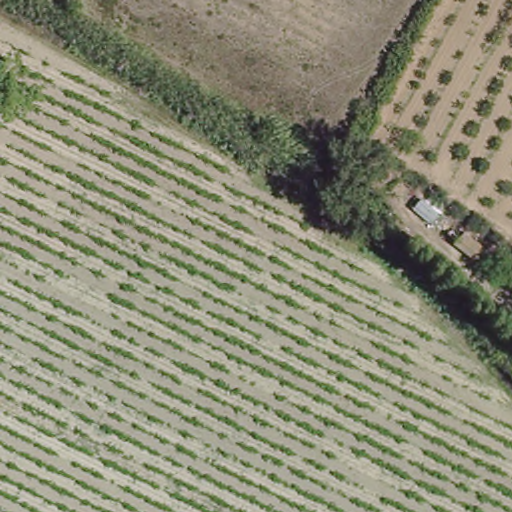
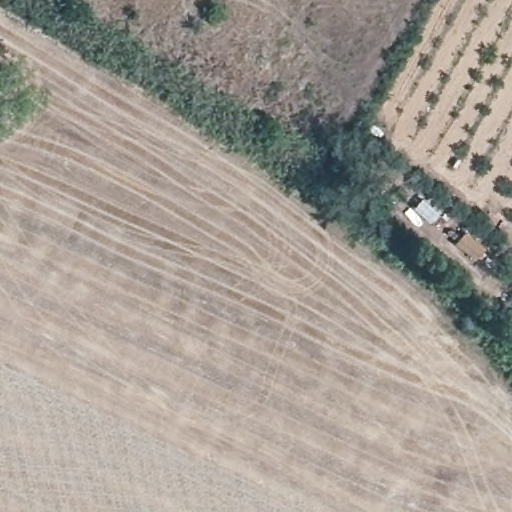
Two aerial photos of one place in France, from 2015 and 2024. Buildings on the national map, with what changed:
unchanged [(421,195),(442,211),(427,225),(405,208),(421,195)]
unchanged [(470,227),(488,244),(472,264),(450,244),(470,227)]

